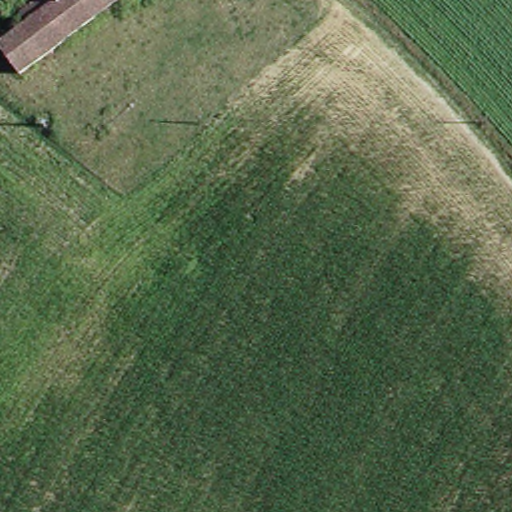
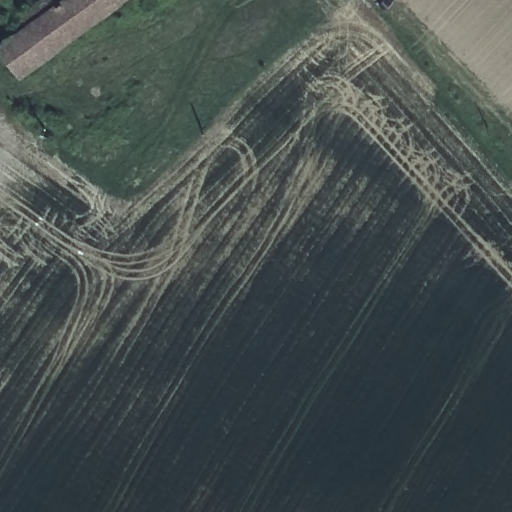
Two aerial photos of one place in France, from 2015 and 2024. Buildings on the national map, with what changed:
unchanged [(26,76),(4,49),(33,26),(25,16),(49,0),(68,0),(69,0),(86,0),(101,22),(26,76)]
unchanged [(86,0),(123,0),(125,5),(101,22),(86,0)]
unchanged [(132,0),(125,5),(123,0),(132,0)]

